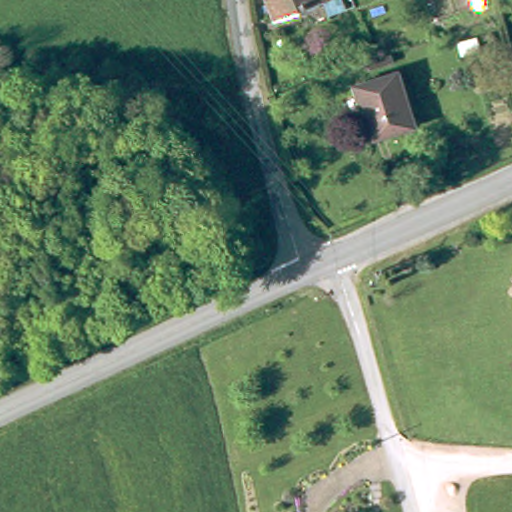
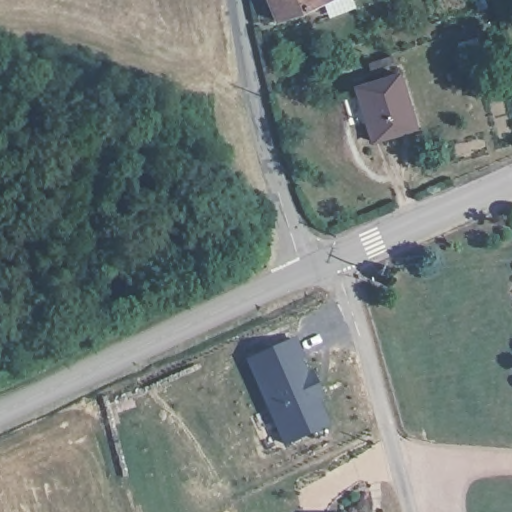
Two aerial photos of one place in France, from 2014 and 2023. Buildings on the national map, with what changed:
unchanged [(281,25),(271,0),(343,0),(281,25)]
unchanged [(482,51),(462,57),(458,42),(478,37),(482,51)]
unchanged [(414,127),(371,140),(355,86),(398,73),(414,127)]
new [(244,361),(294,340),(307,371),(311,370),(323,397),(318,399),(329,426),(284,447),(244,361)]

